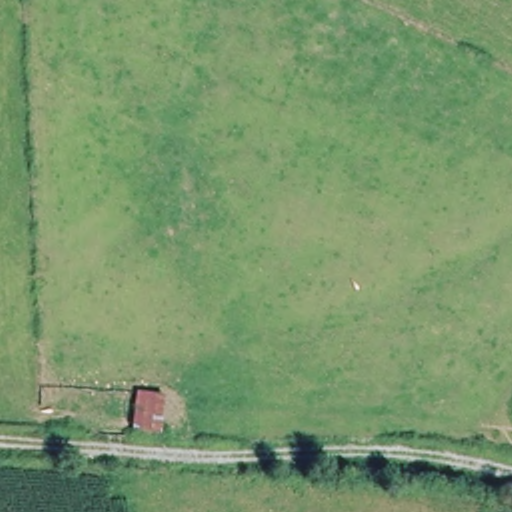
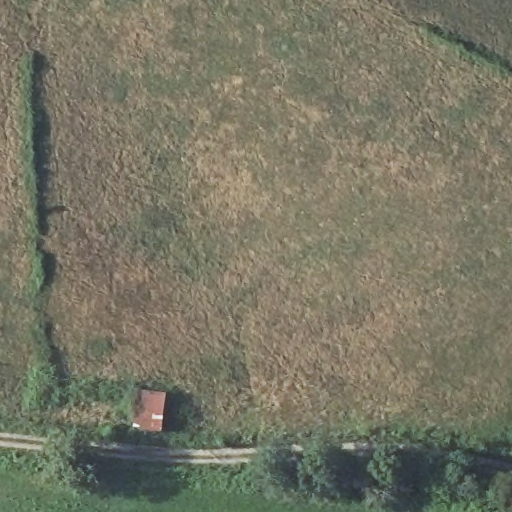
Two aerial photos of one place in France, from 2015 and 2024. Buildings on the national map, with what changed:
unchanged [(130,388),(163,392),(160,430),(127,426),(130,388)]

